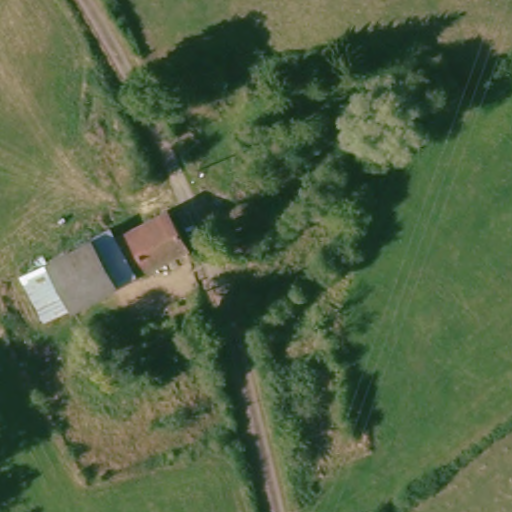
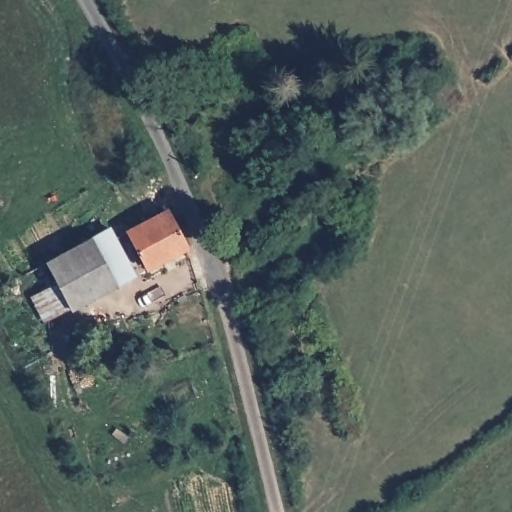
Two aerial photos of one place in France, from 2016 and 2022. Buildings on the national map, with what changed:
unchanged [(213,179),(224,203),(213,210),(209,212),(196,187),(201,185),(213,179)]
unchanged [(142,271),(121,231),(160,210),(181,249),(142,271)]
unchanged [(108,230),(133,276),(114,287),(89,241),(108,230)]
unchanged [(114,287),(75,309),(71,312),(45,265),(49,263),(89,241),(114,287)]
unchanged [(45,265),(71,312),(42,328),(18,282),(45,265)]

